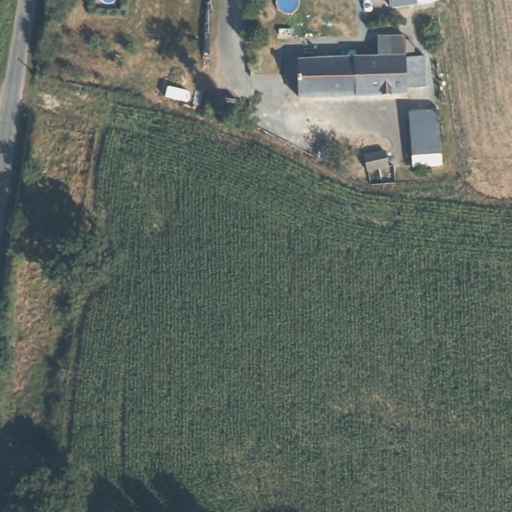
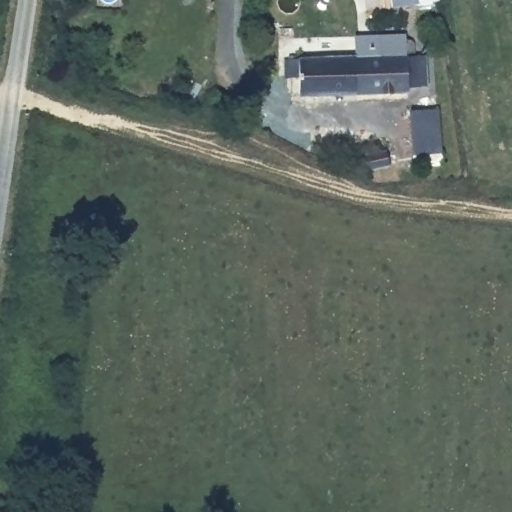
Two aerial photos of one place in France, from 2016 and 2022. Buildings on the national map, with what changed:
unchanged [(393,4),(393,0),(421,0),(393,4)]
unchanged [(400,42),(401,51),(408,52),(409,65),(422,65),(423,89),(405,90),(405,101),(293,107),(293,87),(280,87),(279,67),(372,60),(371,45),(400,42)]
unchanged [(239,104),(236,119),(209,112),(211,97),(239,104)]
unchanged [(442,153),(411,155),(406,112),(438,109),(442,153)]
unchanged [(361,158),(362,152),(390,148),(393,169),(364,172),(361,158)]
unchanged [(0,512),(0,502),(5,503),(4,512),(0,512)]

